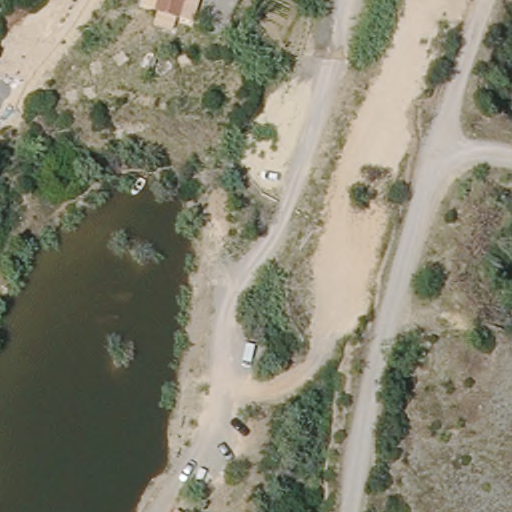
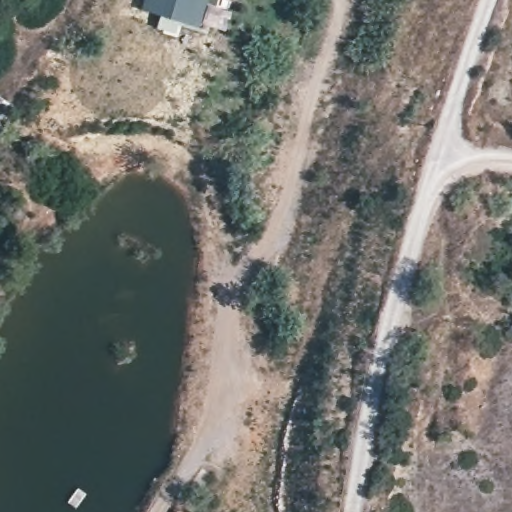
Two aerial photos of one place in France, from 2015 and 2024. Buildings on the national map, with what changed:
unchanged [(161,0),(189,0),(181,24),(156,15),(161,0)]

